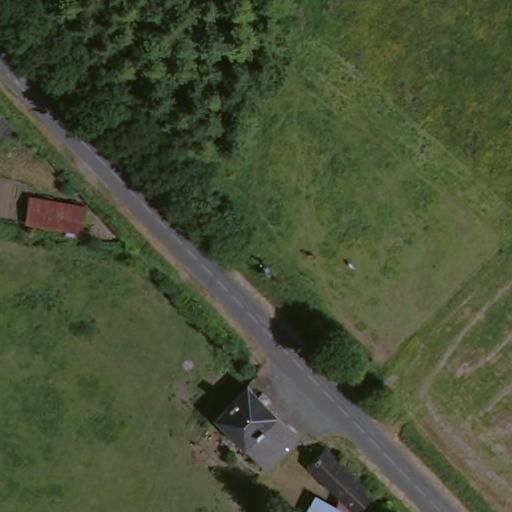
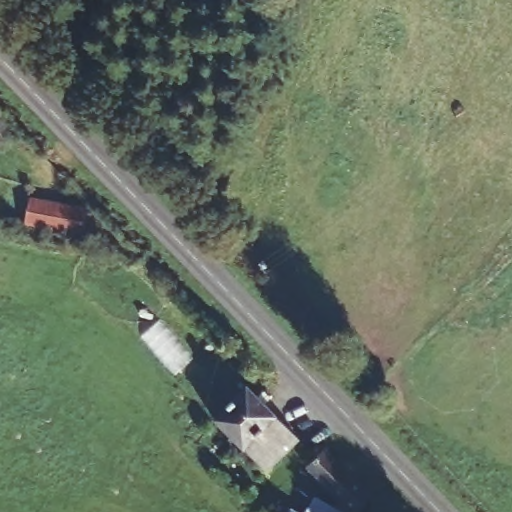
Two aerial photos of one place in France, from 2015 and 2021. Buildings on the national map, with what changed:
unchanged [(0,138),(0,115),(12,127),(0,138)]
unchanged [(60,233),(57,232),(24,225),(29,194),(84,206),(79,236),(60,233)]
unchanged [(246,383),(295,434),(265,467),(213,414),(246,383)]
unchanged [(372,491),(354,512),(307,465),(327,444),(372,491)]
unchanged [(298,485),(343,509),(342,512),(271,512),(275,503),(289,509),(293,495),(298,485)]

